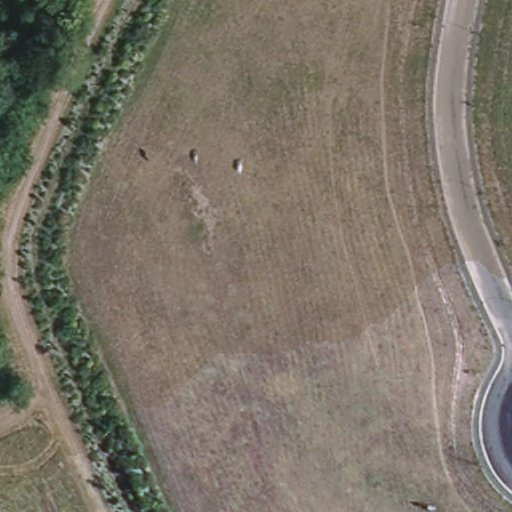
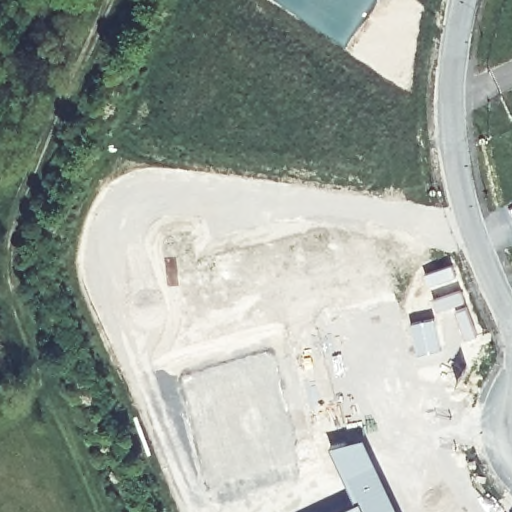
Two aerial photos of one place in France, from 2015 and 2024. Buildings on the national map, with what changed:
new [(365,435),(400,512),(365,512),(357,498),(355,499),(331,445),(365,435)]
new [(355,499),(357,498),(365,512),(329,512),(355,499)]

